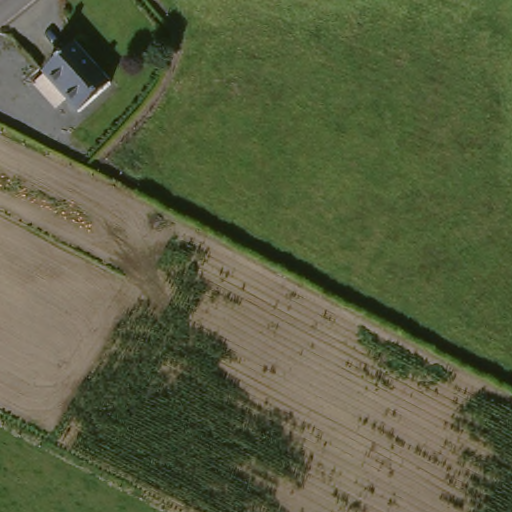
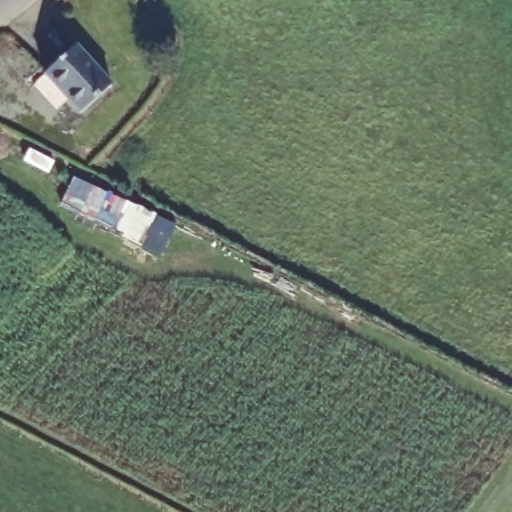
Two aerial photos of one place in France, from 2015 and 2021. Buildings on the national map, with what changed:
unchanged [(42,67),(73,39),(109,78),(77,106),(42,67)]

